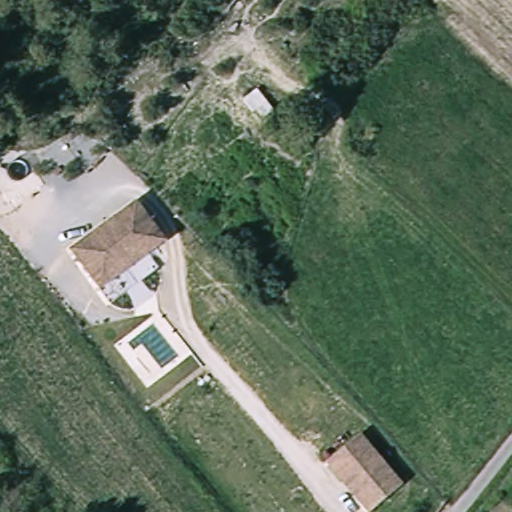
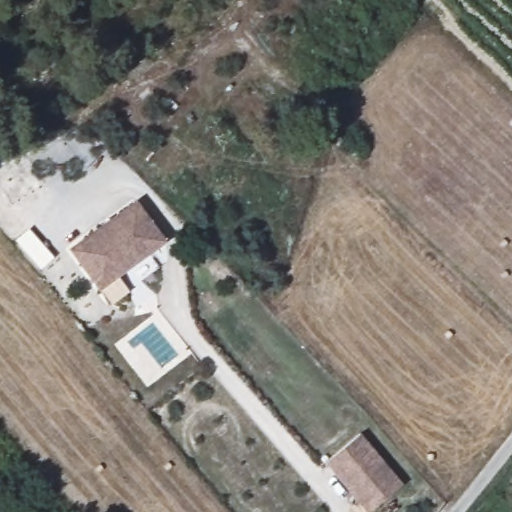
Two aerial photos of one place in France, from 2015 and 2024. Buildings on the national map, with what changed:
unchanged [(139,207),(166,245),(101,292),(74,253),(139,207)]
unchanged [(403,481),(372,512),(371,512),(326,466),(358,434),(403,481)]

